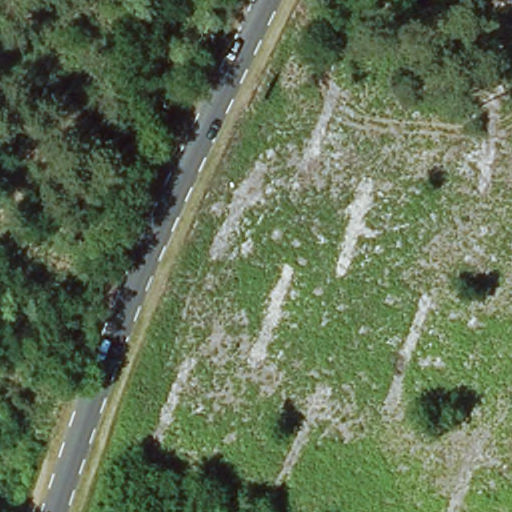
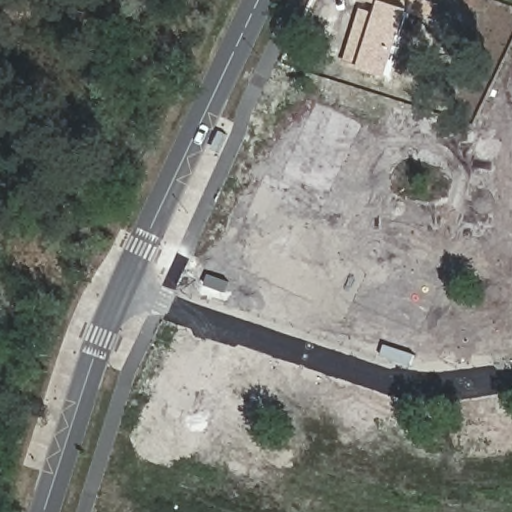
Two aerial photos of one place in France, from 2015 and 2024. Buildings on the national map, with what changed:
new [(377,14),(381,5),(365,0),(425,0),(437,4),(432,19),(412,12),(390,78),(361,70),(345,64),(361,9),(377,14)]

